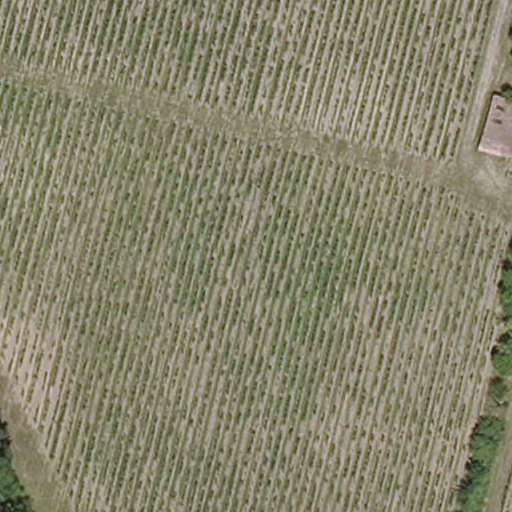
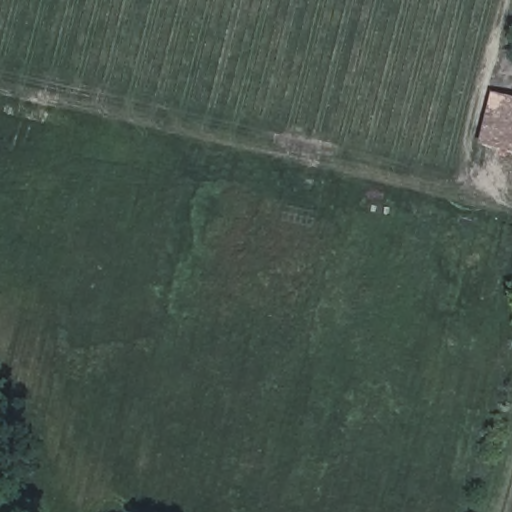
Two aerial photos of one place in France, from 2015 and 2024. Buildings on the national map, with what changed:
unchanged [(512,97),(512,157),(477,150),(492,92),(512,97)]

